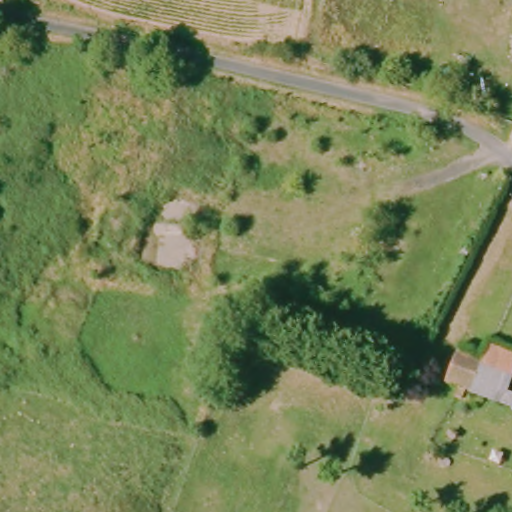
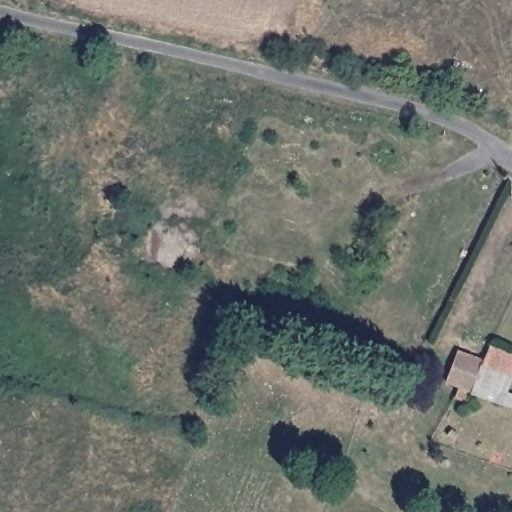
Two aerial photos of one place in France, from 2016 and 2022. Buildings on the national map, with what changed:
unchanged [(487,390),(485,393),(475,388),(457,380),(470,349),(499,363),(497,368),(512,375),(512,402),(487,390)]

